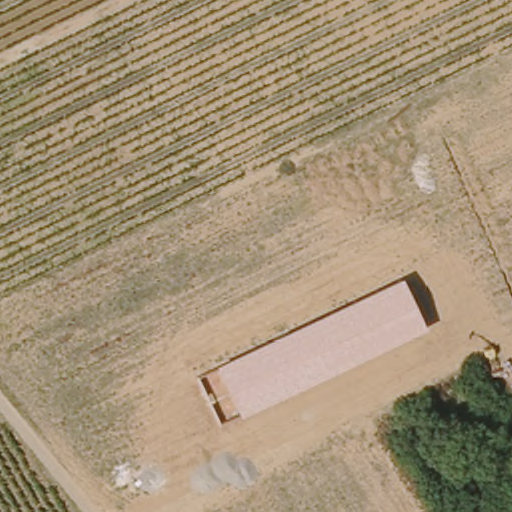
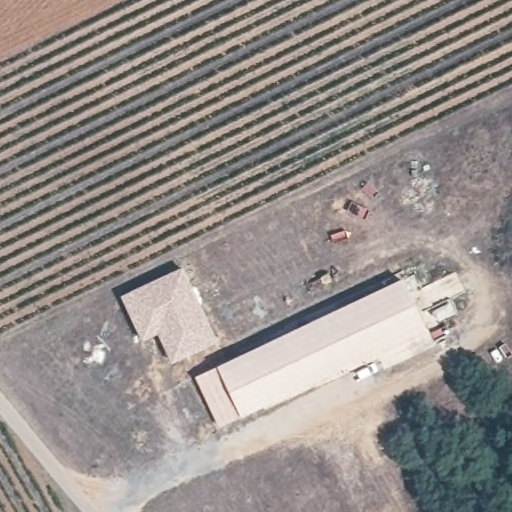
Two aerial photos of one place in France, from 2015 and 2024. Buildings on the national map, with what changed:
new [(173,359),(159,330),(143,338),(123,296),(182,269),(216,341),(173,359)]
unchanged [(240,417),(216,367),(402,279),(426,329),(240,417)]
new [(240,417),(220,428),(196,377),(216,367),(240,417)]

